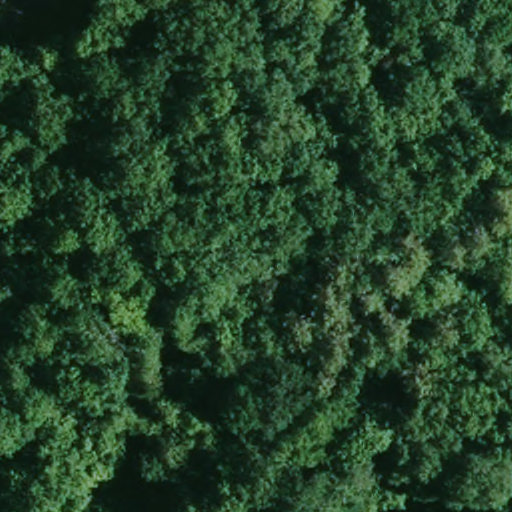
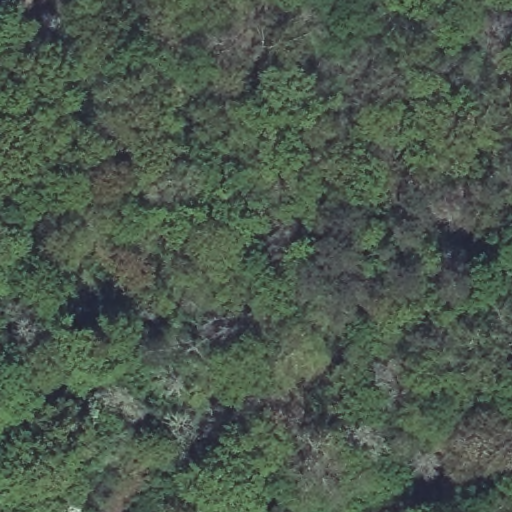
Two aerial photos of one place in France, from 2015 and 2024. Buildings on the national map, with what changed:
unchanged [(13,433),(6,416),(58,393),(69,418),(39,431),(34,424),(13,433)]

